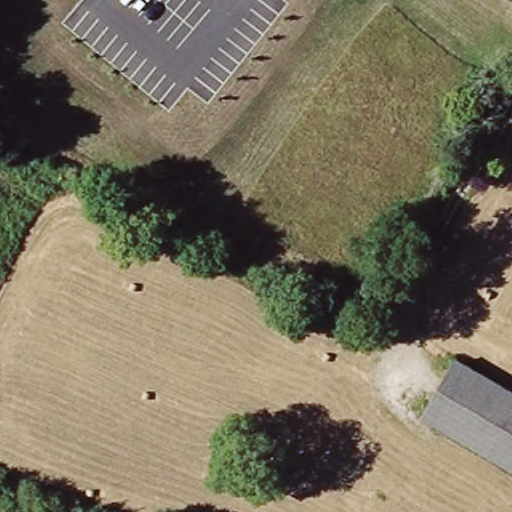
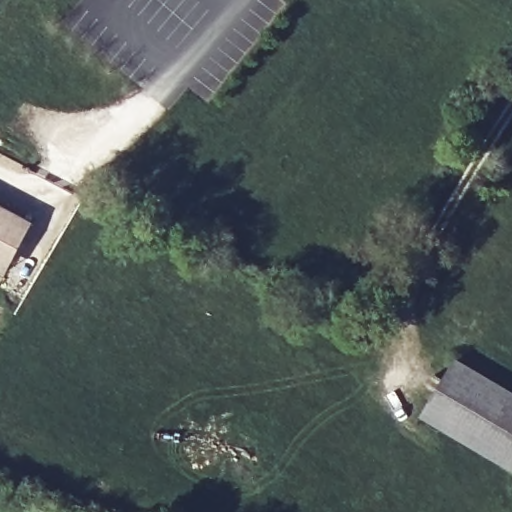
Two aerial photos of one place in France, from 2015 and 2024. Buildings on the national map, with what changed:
new [(0,268),(0,204),(34,222),(12,263),(7,272),(0,268)]
unchanged [(512,396),(512,472),(422,420),(457,364),(512,396)]

